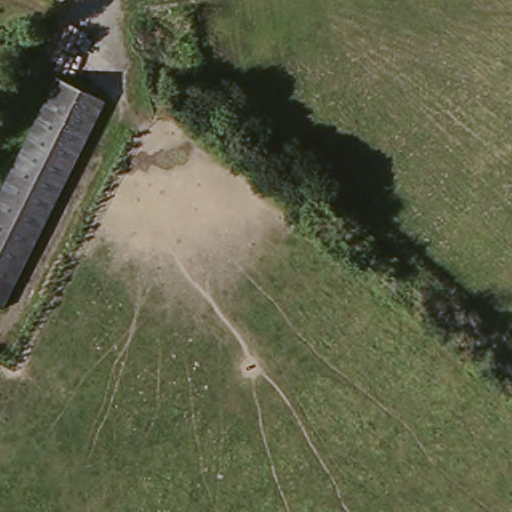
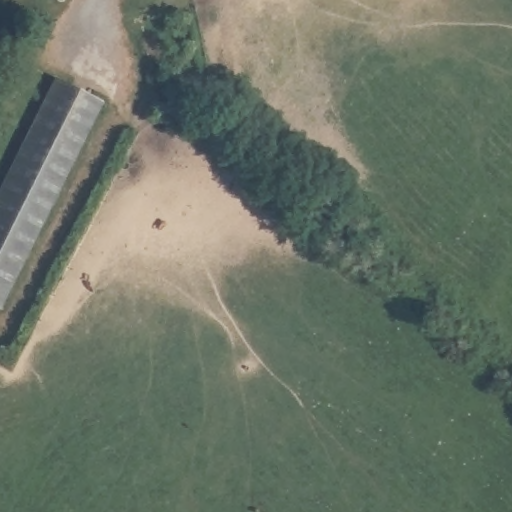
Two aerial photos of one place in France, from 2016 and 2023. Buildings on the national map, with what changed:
unchanged [(0,305),(0,190),(59,76),(106,101),(0,305)]

